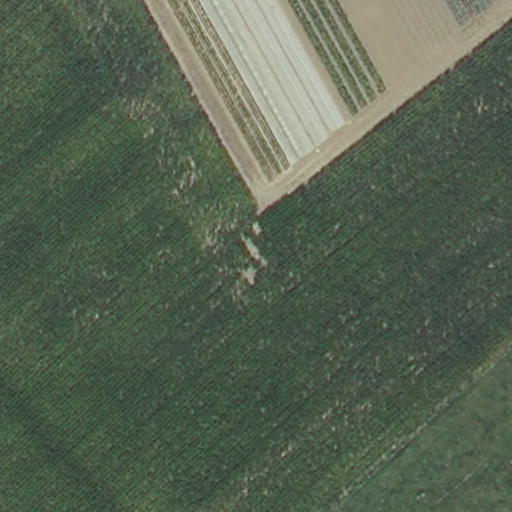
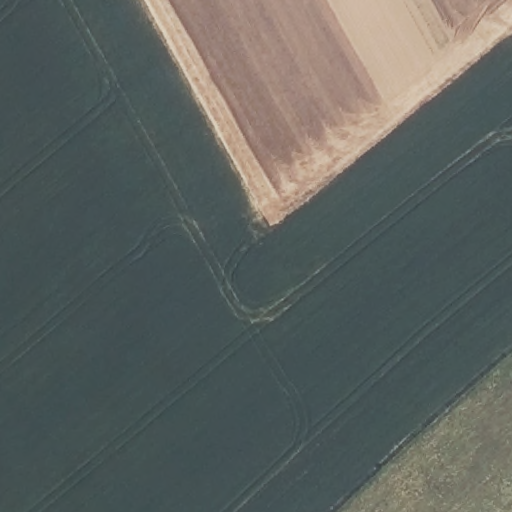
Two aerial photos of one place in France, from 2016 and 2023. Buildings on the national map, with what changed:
[]

